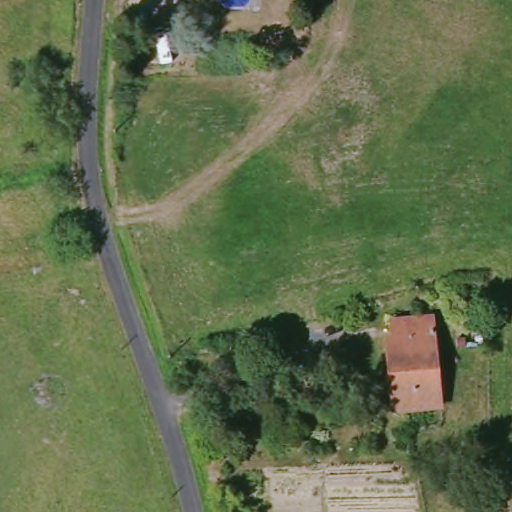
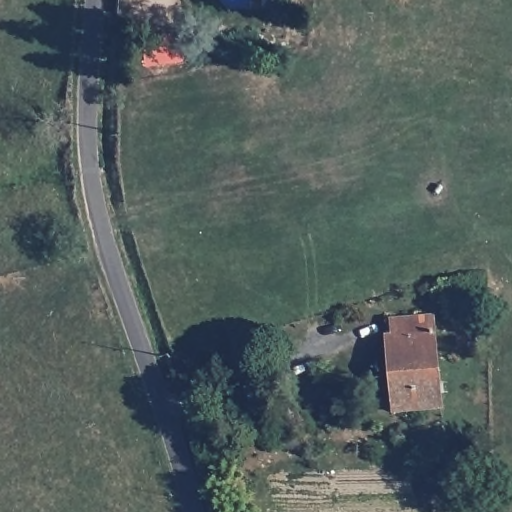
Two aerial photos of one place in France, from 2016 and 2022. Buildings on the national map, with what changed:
unchanged [(425,321),(431,411),(392,414),(384,342),(393,341),(392,323),(425,321)]

